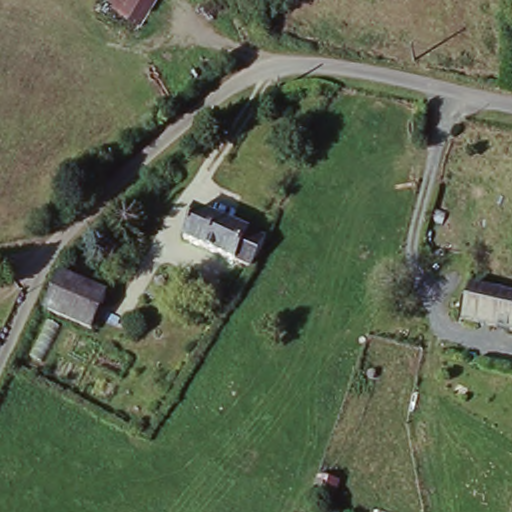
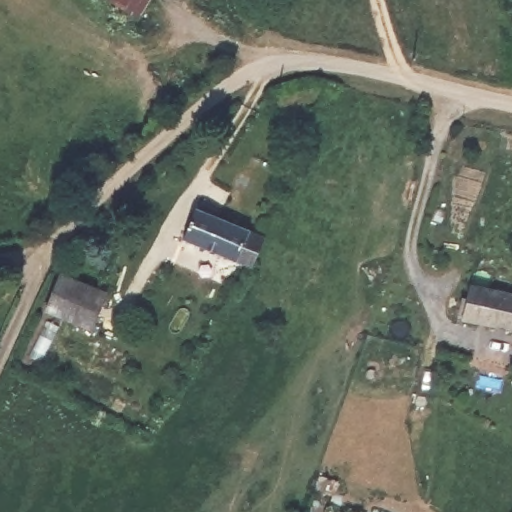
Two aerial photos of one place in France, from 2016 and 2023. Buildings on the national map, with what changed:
unchanged [(105,2),(106,0),(153,0),(140,22),(105,2)]
unchanged [(254,272),(189,244),(199,216),(267,244),(254,272)]
unchanged [(105,300),(91,333),(45,315),(60,283),(105,300)]
unchanged [(459,315),(462,300),(470,301),(472,286),(512,295),(512,328),(459,315)]
unchanged [(343,483),(335,512),(328,512),(313,507),(324,478),(343,483)]

